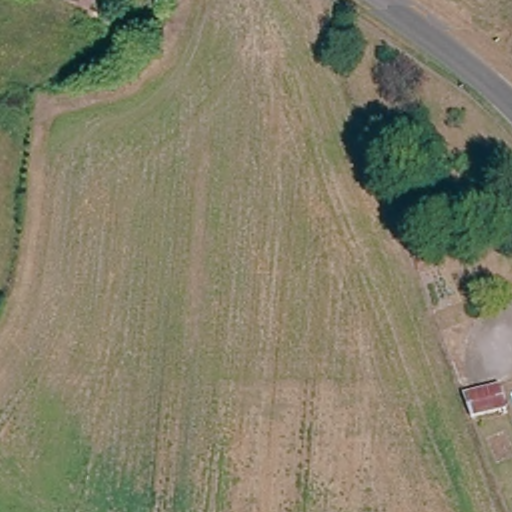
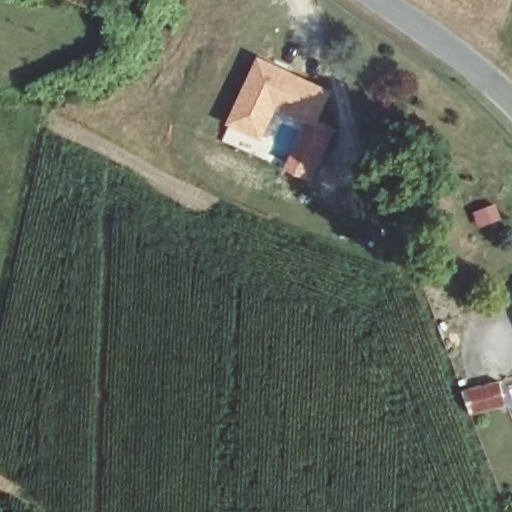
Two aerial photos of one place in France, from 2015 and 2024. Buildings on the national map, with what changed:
unchanged [(57,2),(57,0),(92,0),(87,13),(57,2)]
new [(227,127),(224,125),(257,55),(331,91),(317,122),(315,121),(313,124),(306,121),(304,123),(302,123),(277,111),(262,144),(236,132),(232,140),(237,142),(235,146),(221,140),(227,127)]
new [(302,123),(304,123),(306,121),(313,124),(315,121),(317,122),(335,130),(311,183),(282,169),(302,123)]
unchanged [(475,388),(491,382),(507,378),(512,400),(512,404),(482,413),(475,388)]

